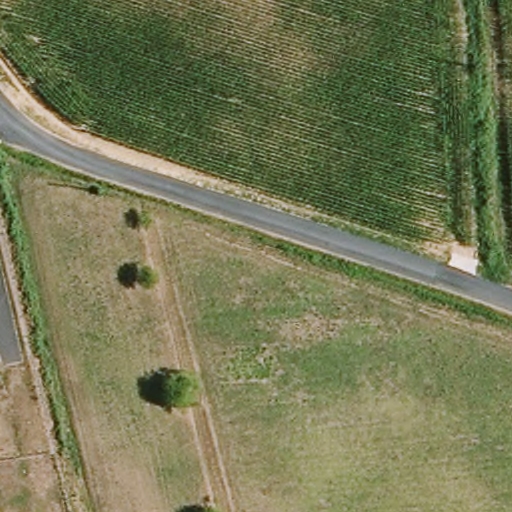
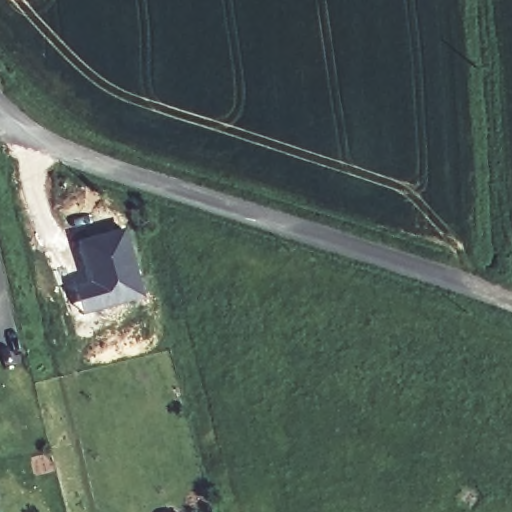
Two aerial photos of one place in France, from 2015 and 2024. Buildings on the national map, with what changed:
new [(86,280),(76,238),(125,225),(146,296),(83,314),(73,284),(86,280)]

